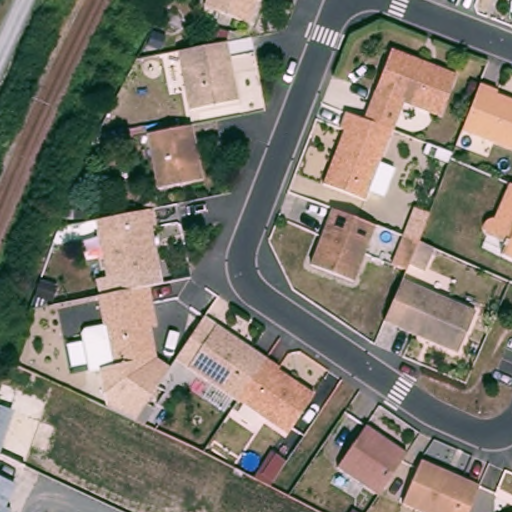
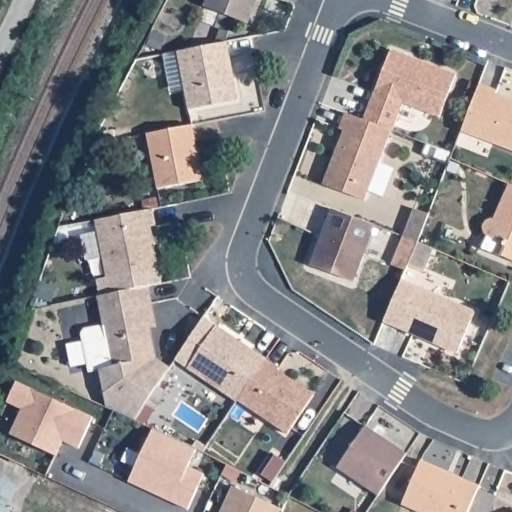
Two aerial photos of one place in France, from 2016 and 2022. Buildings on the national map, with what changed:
unchanged [(211,5),(213,0),(262,0),(253,21),(211,5)]
unchanged [(234,40),(245,99),(196,109),(184,49),(234,40)]
unchanged [(395,44),(431,59),(430,62),(436,65),(442,62),(460,70),(444,111),(407,96),(396,124),(395,124),(389,121),(377,116),(368,112),(395,44)]
unchanged [(501,91),(499,94),(512,99),(512,148),(465,130),(483,84),(501,91)]
unchanged [(368,112),(377,116),(389,121),(395,124),(382,156),(397,162),(386,190),(371,184),(367,193),(326,177),(348,123),(343,121),(349,105),(368,112)]
unchanged [(156,132),(196,124),(206,177),(161,186),(151,133),(156,132)]
unchanged [(451,153),(450,157),(448,162),(423,152),(426,143),(451,153)]
unchanged [(512,192),(512,263),(503,260),(508,248),(489,240),(488,239),(487,239),(487,238),(486,237),(485,236),(485,235),(485,234),(484,233),(484,232),(484,231),(485,230),(485,229),(485,228),(485,227),(486,227),(486,226),(487,226),(487,225),(488,225),(489,224),(490,224),(491,223),(492,223),(493,223),(494,223),(495,223),(496,223),(496,224),(497,224),(512,192)]
unchanged [(157,206),(163,222),(154,224),(164,272),(109,277),(98,216),(157,206)]
unchanged [(357,281),(313,263),(335,207),(367,220),(379,225),(357,281)]
unchanged [(421,271),(407,265),(405,270),(405,271),(391,265),(402,236),(413,208),(428,214),(417,242),(431,248),(421,271)]
unchanged [(152,284),(163,325),(156,327),(162,353),(150,356),(114,363),(100,295),(152,284)]
unchanged [(484,312),(466,353),(406,327),(424,286),(484,312)]
unchanged [(195,370),(183,362),(212,320),(225,328),(274,362),(246,403),(245,405),(195,370)]
unchanged [(150,356),(167,368),(134,420),(103,406),(95,368),(114,363),(150,356)]
unchanged [(288,372),(286,374),(321,399),(295,437),(246,403),(274,362),(288,372)]
new [(15,382),(92,417),(77,447),(61,440),(54,455),(9,434),(21,408),(6,402),(15,382)]
unchanged [(381,495),(340,466),(368,425),(410,453),(381,495)]
new [(152,428),(195,449),(187,467),(203,475),(187,508),(128,481),(152,428)]
unchanged [(487,486),(475,512),(429,512),(409,503),(429,460),(487,486)]
new [(230,487),(280,510),(279,512),(219,512),(230,487)]
unchanged [(0,507),(9,512),(0,512),(0,507)]

